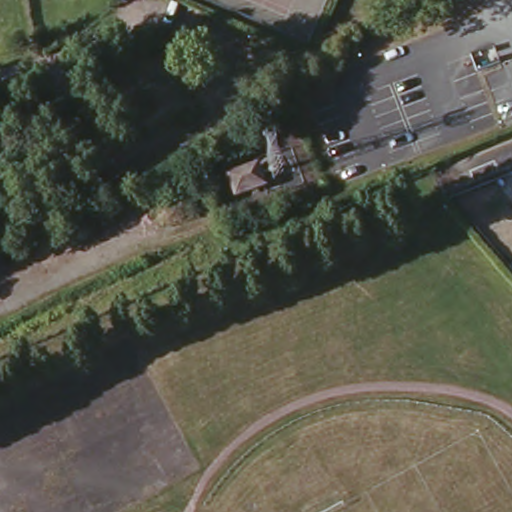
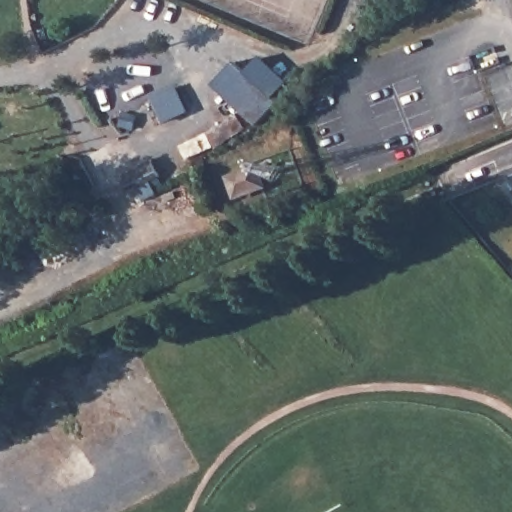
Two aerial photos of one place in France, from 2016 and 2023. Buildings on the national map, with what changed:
new [(260,59),(287,85),(277,105),(255,128),(213,87),(236,63),(246,72),(260,59)]
unchanged [(153,178),(161,194),(149,199),(141,185),(130,190),(120,171),(151,157),(162,174),(153,178)]
unchanged [(262,171),(270,186),(244,199),(236,184),(262,171)]

